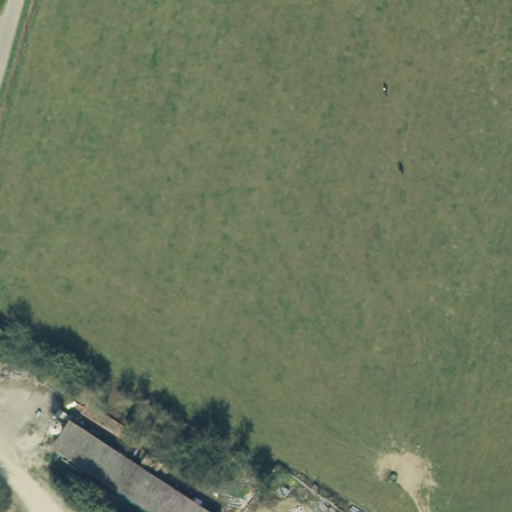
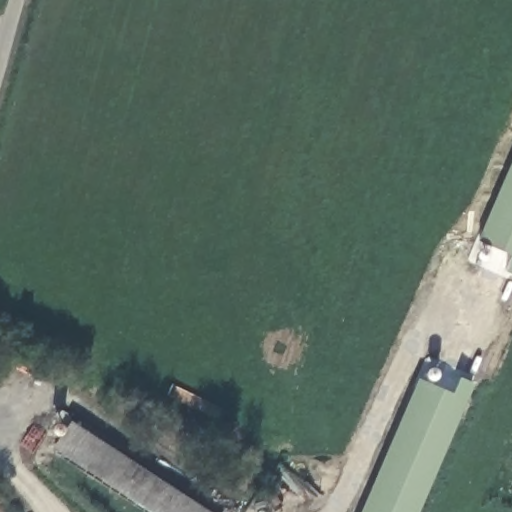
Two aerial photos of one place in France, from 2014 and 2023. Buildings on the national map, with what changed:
new [(504,271),(511,256),(476,240),(512,157),(512,274),(504,271)]
new [(459,376),(474,383),(419,512),(360,512),(418,378),(452,393),(459,376)]
unchanged [(151,512),(53,448),(67,427),(196,512),(151,512)]

